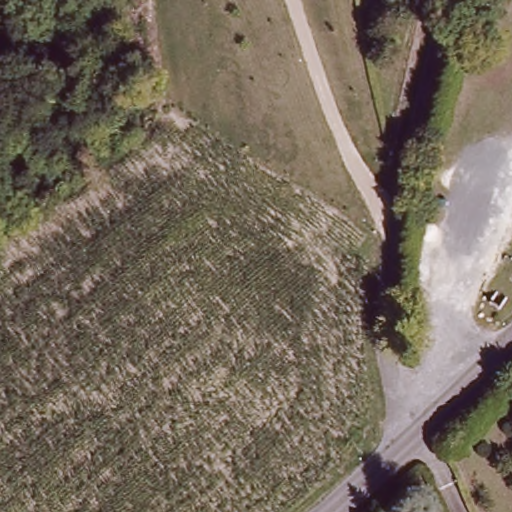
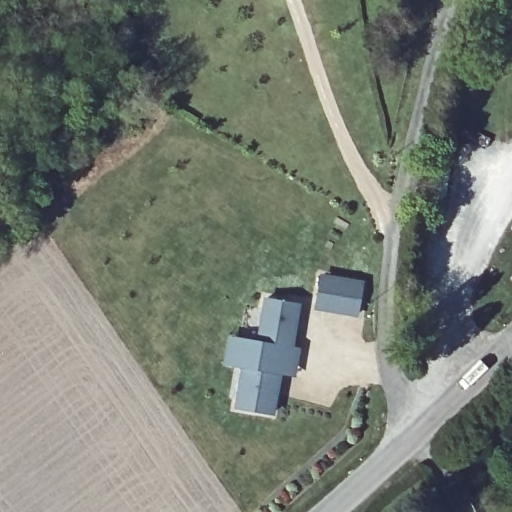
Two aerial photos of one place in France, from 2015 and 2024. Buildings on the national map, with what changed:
new [(318,274),(362,282),(355,316),(312,309),(318,274)]
new [(301,304),(294,346),(301,348),(297,376),(282,374),(275,415),(232,407),(239,367),(222,364),(228,335),(255,339),(261,298),(301,304)]

